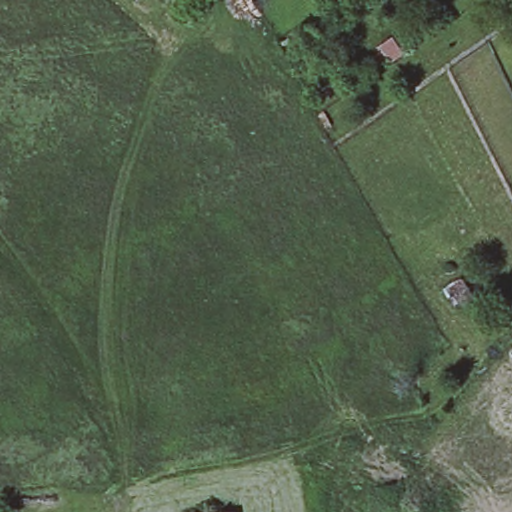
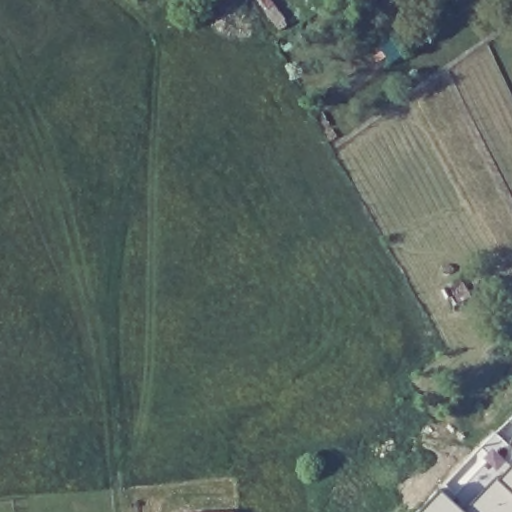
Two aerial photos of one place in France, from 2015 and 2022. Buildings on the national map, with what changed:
new [(512,512),(420,512),(485,444),(500,431),(512,443),(512,512)]
unchanged [(234,512),(181,512),(180,511),(234,510),(234,512)]

